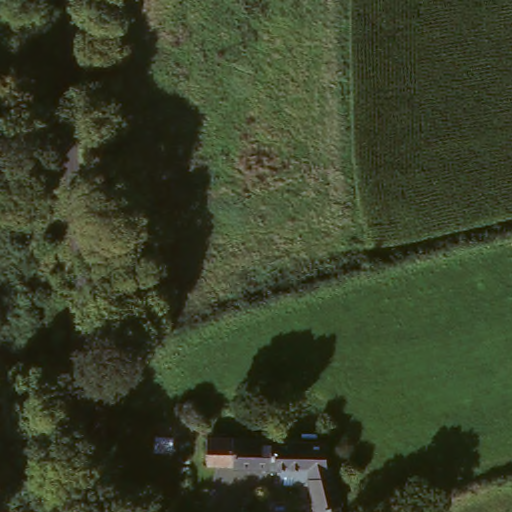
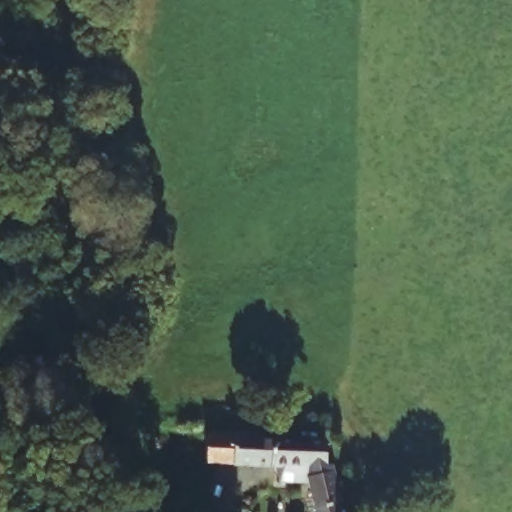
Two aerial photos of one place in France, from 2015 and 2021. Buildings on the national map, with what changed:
unchanged [(338,512),(315,512),(311,488),(282,482),(283,464),(217,449),(205,447),(210,418),(223,421),(337,446),(332,474),(338,512)]

